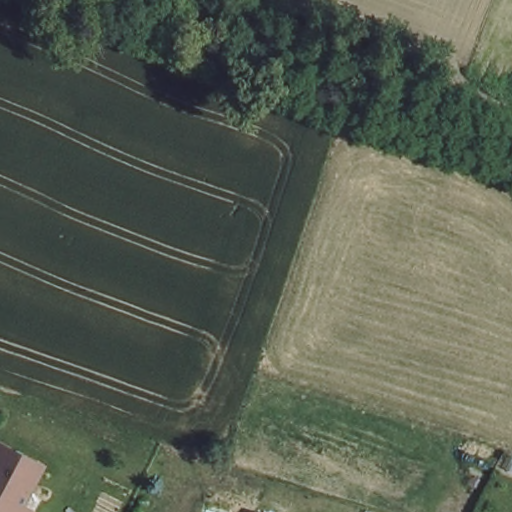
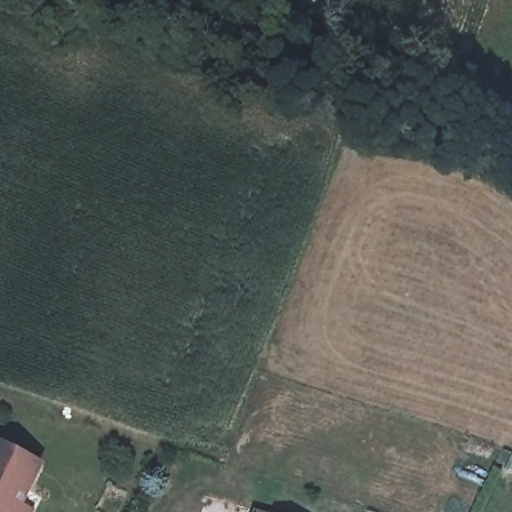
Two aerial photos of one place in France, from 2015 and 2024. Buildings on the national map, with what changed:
unchanged [(0,417),(5,408),(63,443),(33,512),(0,512),(0,417)]

